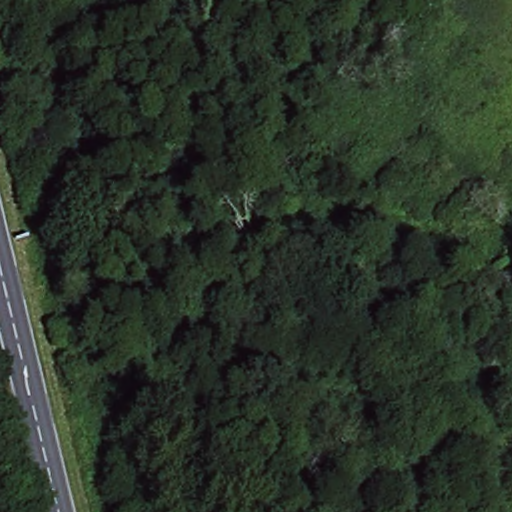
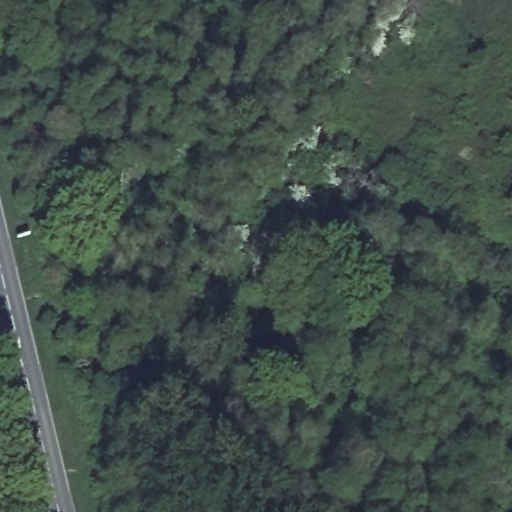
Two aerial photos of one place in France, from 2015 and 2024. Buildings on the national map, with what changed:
[]

